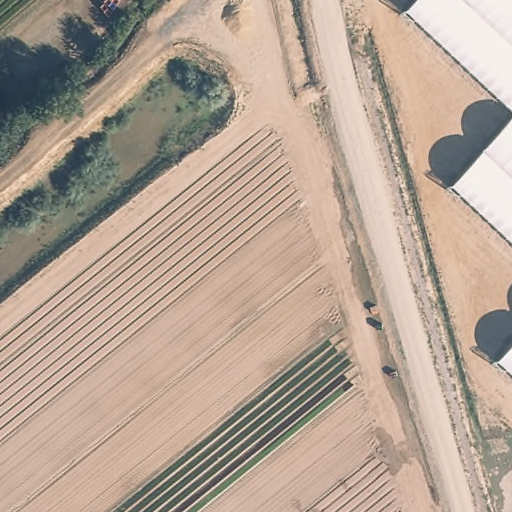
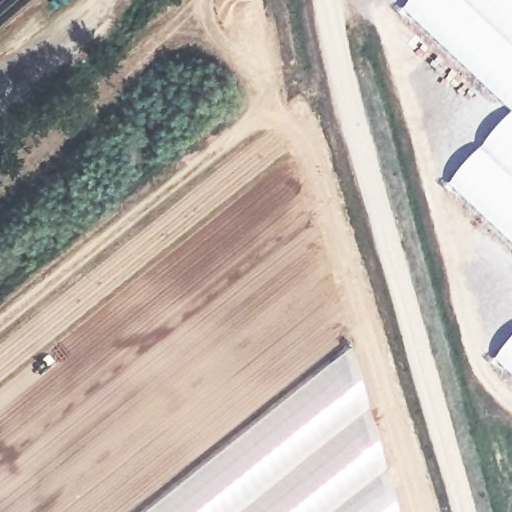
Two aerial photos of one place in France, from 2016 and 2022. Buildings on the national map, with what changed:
unchanged [(415,0),(512,0),(512,111),(404,12),(415,0)]
unchanged [(512,116),(512,245),(448,187),(512,116)]
unchanged [(512,342),(512,376),(495,360),(512,342)]
new [(397,512),(151,512),(352,349),(397,512)]

